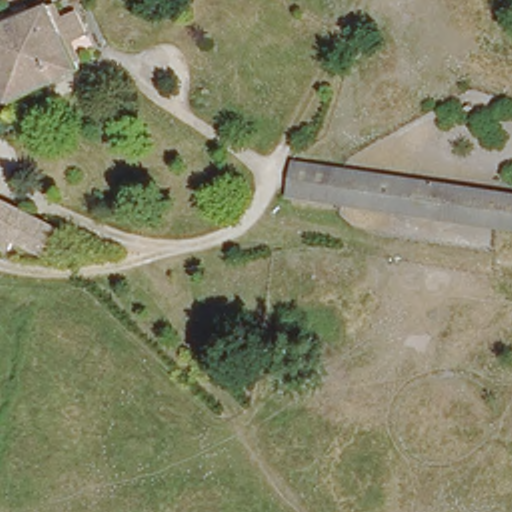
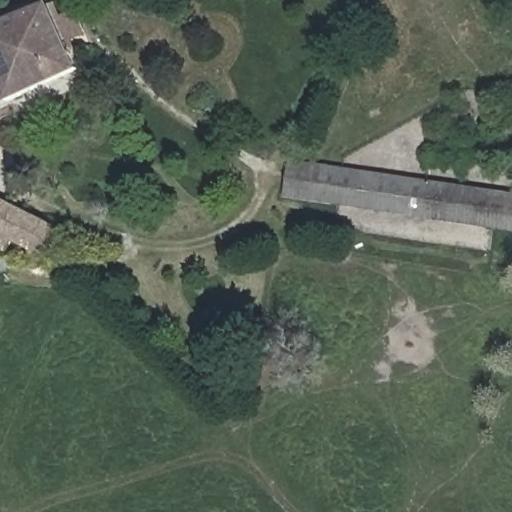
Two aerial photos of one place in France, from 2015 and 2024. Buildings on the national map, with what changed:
unchanged [(75,68),(6,103),(5,99),(0,89),(0,24),(11,19),(15,17),(40,3),(42,2),(46,0),(75,68)]
unchanged [(287,157),(512,187),(512,231),(281,198),(287,157)]
unchanged [(38,255),(26,250),(0,239),(0,194),(54,220),(41,249),(38,255)]

